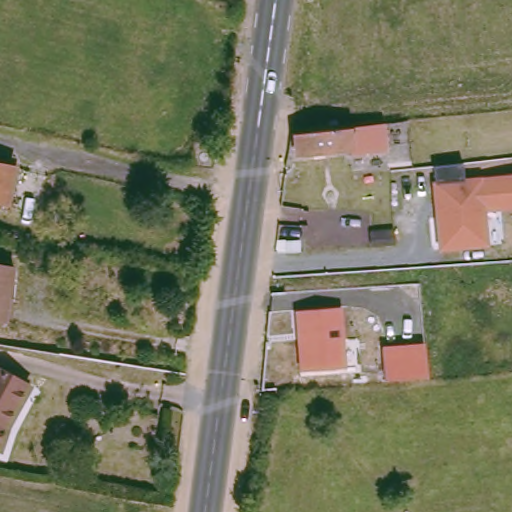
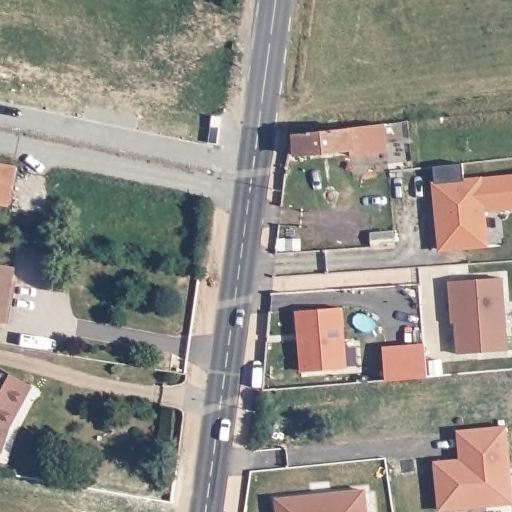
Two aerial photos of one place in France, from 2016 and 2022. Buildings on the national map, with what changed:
unchanged [(289,133),(291,132),(314,130),(376,124),(379,153),(343,157),(343,152),(317,154),(286,157),(289,133)]
unchanged [(7,200),(0,199),(0,154),(14,156),(7,200)]
unchanged [(435,178),(433,164),(463,160),(464,176),(512,172),(512,206),(486,209),(489,243),(438,248),(431,179),(435,178)]
unchanged [(1,319),(0,319),(0,261),(14,264),(10,290),(6,290),(1,319)]
new [(497,278),(502,352),(454,355),(451,300),(447,300),(446,282),(497,278)]
unchanged [(342,307),(346,368),(299,371),(294,311),(342,307)]
unchanged [(424,343),(428,377),(384,380),(381,347),(424,343)]
unchanged [(13,419),(5,447),(0,445),(0,366),(33,385),(13,419)]
new [(512,480),(512,504),(438,509),(434,461),(459,459),(458,431),(508,426),(512,480)]
new [(366,489),(368,512),(277,512),(276,498),(366,489)]

